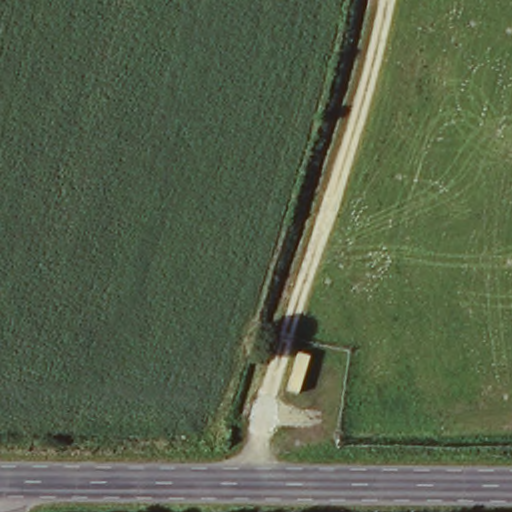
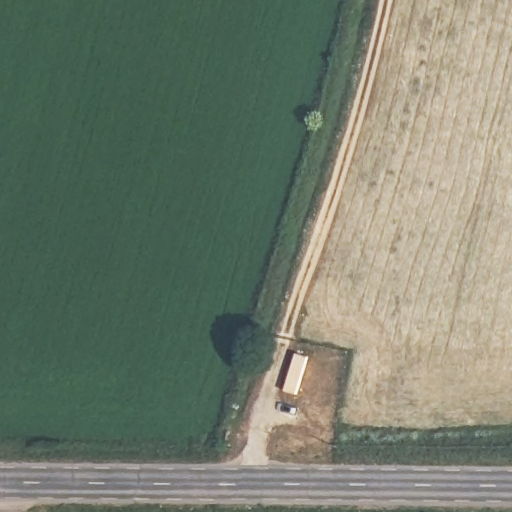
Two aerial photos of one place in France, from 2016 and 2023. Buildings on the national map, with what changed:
unchanged [(314,356),(302,397),(286,392),(299,351),(314,356)]

